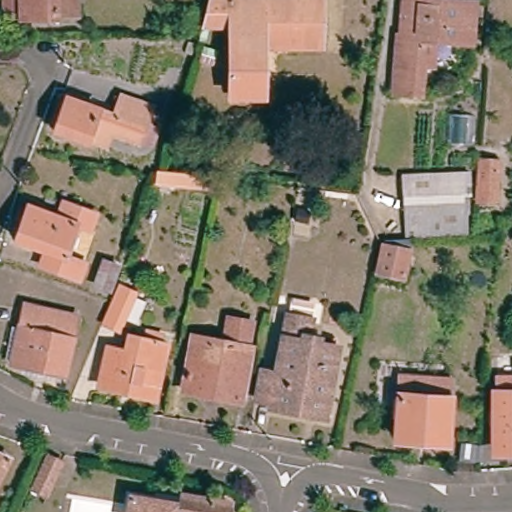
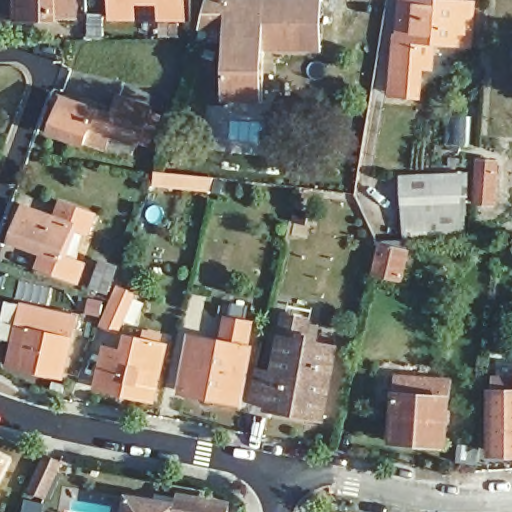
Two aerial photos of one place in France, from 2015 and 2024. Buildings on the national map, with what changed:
unchanged [(2,25),(2,0),(77,0),(77,24),(2,25)]
new [(110,20),(110,0),(187,0),(187,20),(110,20)]
unchanged [(320,4),(320,54),(262,54),(262,104),(229,104),(229,34),(201,34),(210,0),(293,0),(293,4),(320,4)]
unchanged [(422,73),(419,102),(392,99),(397,44),(402,45),(405,4),(474,11),(470,50),(434,47),(432,74),(422,73)]
unchanged [(151,110),(138,145),(111,135),(105,149),(86,142),(85,145),(55,134),(68,99),(99,110),(96,114),(112,120),(120,99),(151,110)]
unchanged [(498,169),(495,209),(478,209),(481,169),(498,169)]
unchanged [(403,184),(462,180),(466,242),(406,245),(403,184)]
unchanged [(57,224),(63,209),(95,220),(89,238),(74,232),(63,263),(85,271),(79,287),(39,274),(46,257),(15,245),(28,213),(57,224)]
unchanged [(382,247),(410,254),(404,280),(375,274),(382,247)]
unchanged [(94,288),(103,263),(118,269),(109,293),(94,288)]
unchanged [(121,289),(135,296),(120,332),(105,326),(121,289)]
unchanged [(25,312),(75,323),(63,382),(12,371),(25,312)]
unchanged [(318,423),(267,413),(268,408),(251,404),(256,376),(273,379),(283,323),(303,327),(300,344),(314,346),(313,353),(330,356),(318,423)]
unchanged [(241,406),(190,396),(200,345),(228,351),(233,325),(257,329),(241,406)]
unchanged [(125,365),(129,350),(146,354),(148,346),(160,349),(158,357),(165,359),(153,410),(99,397),(108,361),(125,365)]
unchanged [(488,376),(512,376),(512,454),(486,454),(488,376)]
unchanged [(395,458),(398,396),(450,399),(446,461),(425,459),(416,459),(395,458)]
unchanged [(49,460),(62,466),(48,497),(35,491),(49,460)]
unchanged [(0,476),(0,464),(5,466),(0,476)]
unchanged [(126,489),(151,494),(151,496),(177,501),(179,489),(225,498),(222,512),(122,512),(126,489)]

